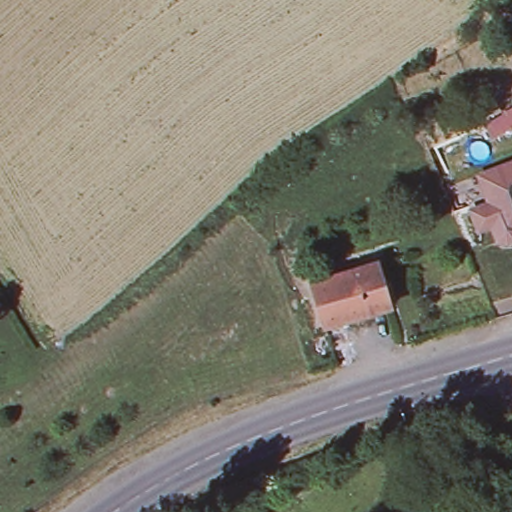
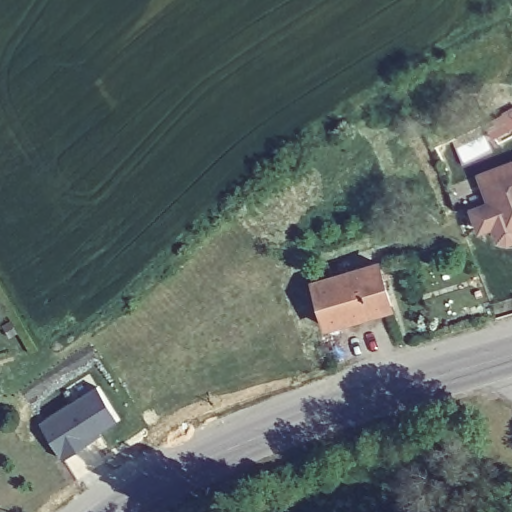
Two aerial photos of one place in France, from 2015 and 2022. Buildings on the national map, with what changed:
unchanged [(512,107),(512,127),(510,128),(500,114),(512,107)]
unchanged [(510,241),(499,240),(493,226),(479,231),(471,211),(490,204),(478,177),(512,163),(512,240),(510,241)]
unchanged [(313,272),(331,266),(335,277),(316,282),(313,272)]
unchanged [(383,267),(396,310),(331,330),(318,287),(383,267)]
new [(96,386),(118,420),(100,432),(102,435),(62,460),(40,423),(96,386)]

